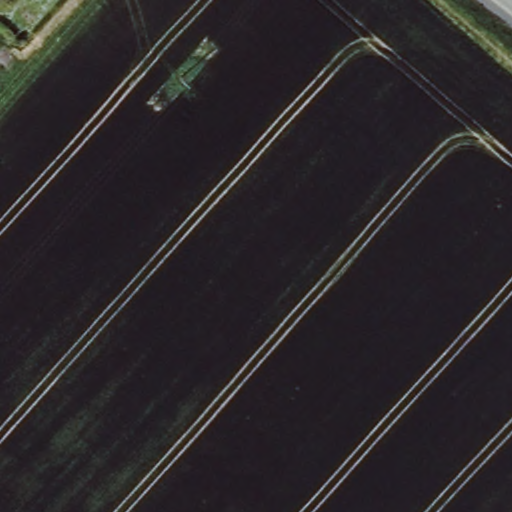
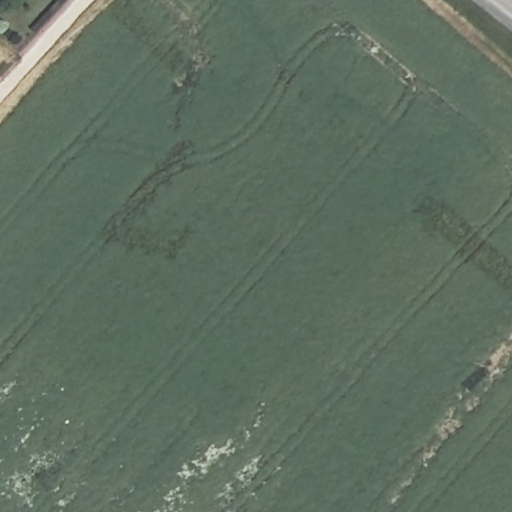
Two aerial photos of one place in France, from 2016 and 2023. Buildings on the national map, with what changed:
[]

